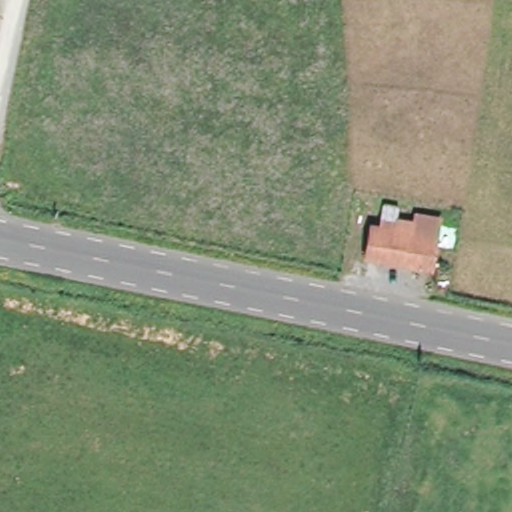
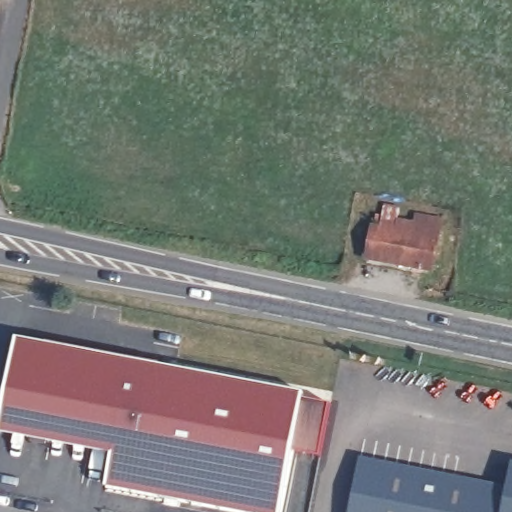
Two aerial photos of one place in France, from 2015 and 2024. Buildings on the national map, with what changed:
unchanged [(365,264),(371,234),(376,235),(379,221),(394,225),(391,238),(404,240),(408,226),(416,228),(417,223),(436,227),(432,246),(426,276),(365,264)]
new [(0,435),(0,422),(16,339),(303,393),(302,399),(329,404),(320,456),(293,451),(282,512),(231,512),(107,489),(114,455),(0,435)]
new [(511,461),(512,462),(512,512),(348,512),(359,456),(507,484),(511,461)]

